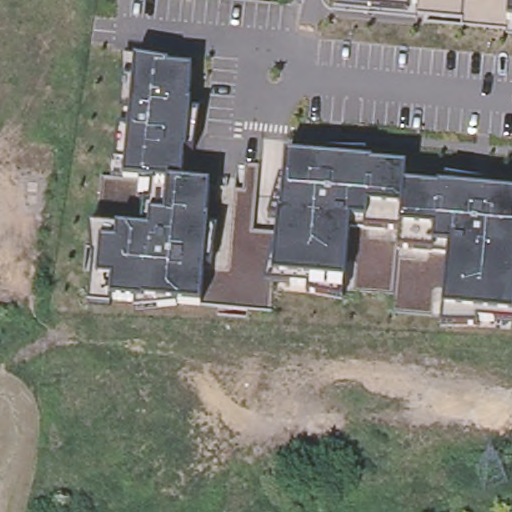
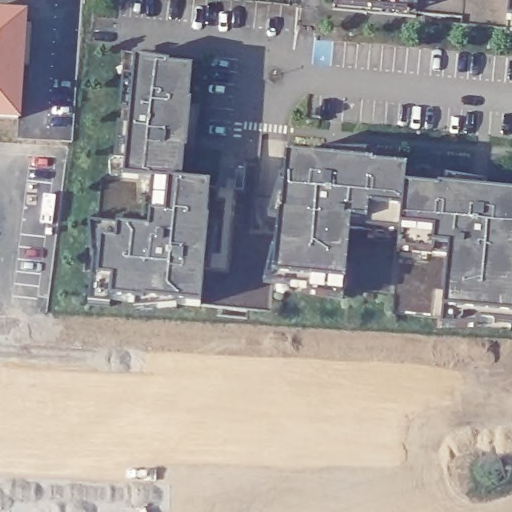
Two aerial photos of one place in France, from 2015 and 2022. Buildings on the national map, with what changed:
unchanged [(417,0),(416,8),(336,1),(336,0),(417,0)]
unchanged [(507,0),(512,0),(512,31),(507,31),(507,0)]
new [(27,6),(21,116),(0,115),(0,4),(27,6)]
unchanged [(93,257),(86,255),(88,228),(146,232),(149,182),(122,180),(133,60),(188,70),(181,183),(206,185),(199,307),(88,305),(93,257)]
unchanged [(404,171),(402,185),(512,194),(512,309),(512,315),(442,311),(449,247),(434,246),(434,254),(396,249),(399,229),(364,221),(349,222),(341,278),(339,298),(314,295),(304,287),(271,273),(283,157),(404,171)]

